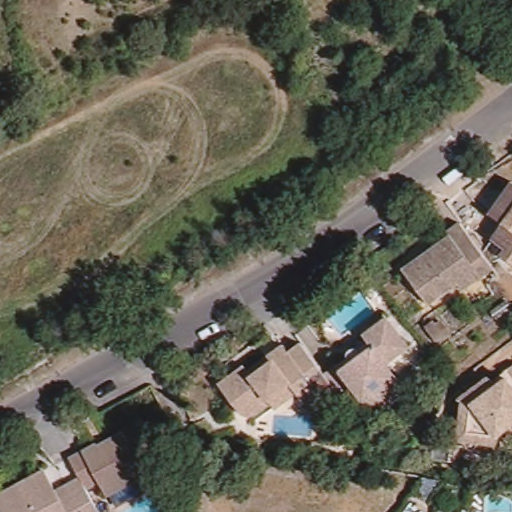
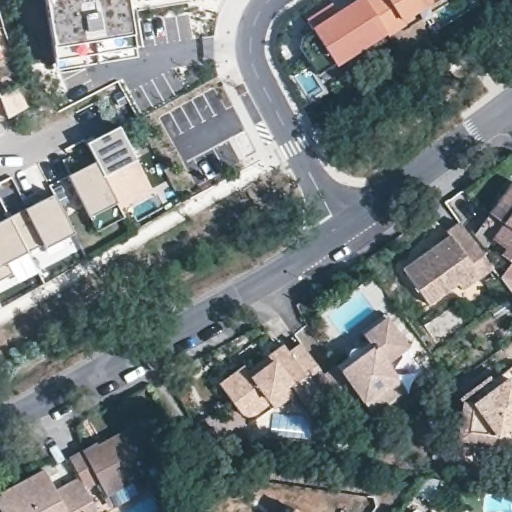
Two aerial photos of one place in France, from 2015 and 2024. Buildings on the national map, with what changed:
new [(45,0),(125,0),(135,57),(57,69),(45,0)]
new [(318,74),(299,48),(302,36),(311,28),(358,0),(438,0),(337,66),(335,64),(318,74)]
new [(3,57),(0,58),(0,52),(3,57)]
new [(147,193),(114,209),(84,146),(116,129),(147,193)]
new [(114,209),(121,207),(126,218),(96,232),(89,218),(69,175),(92,164),(114,209)]
unchanged [(509,252),(496,242),(507,227),(493,217),(512,192),(512,263),(505,259),(509,252)]
new [(75,235),(45,248),(43,244),(25,255),(37,275),(16,285),(11,275),(0,280),(0,222),(55,194),(75,235)]
unchanged [(449,239),(447,235),(459,226),(476,248),(465,257),(449,239)]
unchanged [(458,288),(428,310),(401,275),(427,255),(422,249),(438,238),(443,244),(449,239),(464,258),(465,257),(476,273),(481,279),(462,294),(458,288)]
unchanged [(389,372),(407,396),(375,421),(362,404),(350,412),(332,388),(328,383),(341,373),(372,350),(366,343),(362,338),(386,320),(390,325),(411,355),(389,372)]
unchanged [(332,388),(320,398),(326,407),(312,418),(293,392),(274,407),(278,412),(259,426),(256,427),(253,426),(248,425),(245,423),(224,395),(248,376),(257,389),(304,353),(328,383),(332,388)]
unchanged [(493,379),(496,384),(467,407),(463,401),(493,379)]
unchanged [(512,384),(512,385),(512,433),(501,441),(500,451),(462,445),(467,407),(479,408),(512,384)]
unchanged [(159,464),(141,474),(145,480),(106,501),(98,487),(86,494),(79,483),(76,479),(69,464),(76,459),(96,449),(97,451),(124,436),(140,428),(159,464)]
unchanged [(95,512),(0,512),(0,511),(0,497),(43,475),(54,495),(62,491),(77,484),(86,494),(95,512)]
new [(279,507),(282,509),(285,504),(296,512),(276,512),(279,507)]

